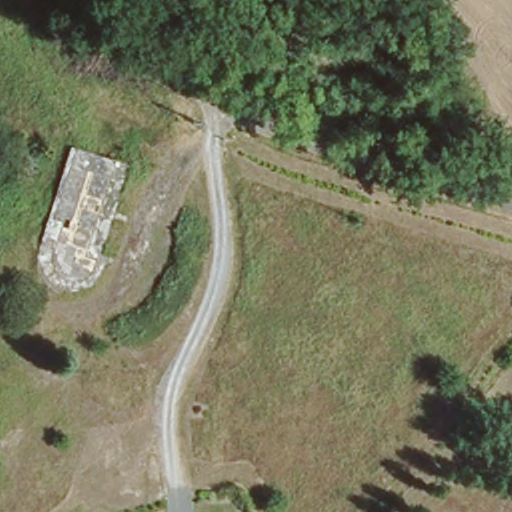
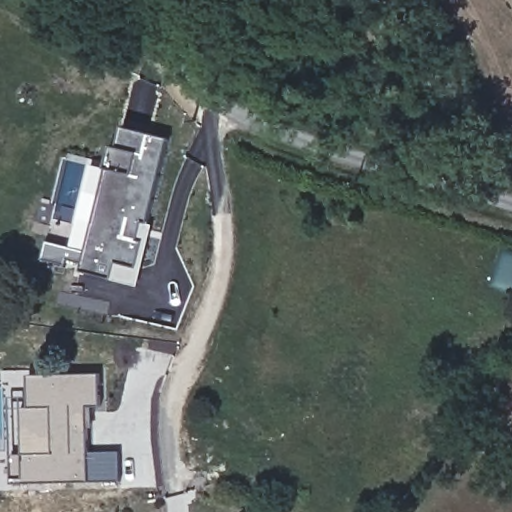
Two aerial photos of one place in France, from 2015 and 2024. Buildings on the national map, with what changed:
new [(107,278),(76,270),(78,262),(64,259),(62,264),(38,257),(43,239),(82,249),(104,168),(102,168),(108,145),(114,147),(119,126),(166,138),(144,223),(139,241),(132,268),(127,283),(107,278)]
new [(104,168),(82,249),(67,245),(89,164),(104,168)]
new [(120,481),(90,482),(26,483),(24,410),(30,410),(29,386),(28,376),(100,374),(101,408),(87,408),(88,455),(118,453),(120,481)]
new [(29,386),(30,410),(24,410),(26,483),(10,484),(7,386),(29,386)]

